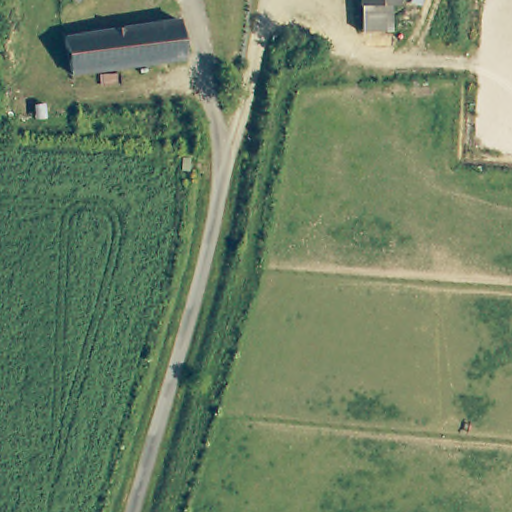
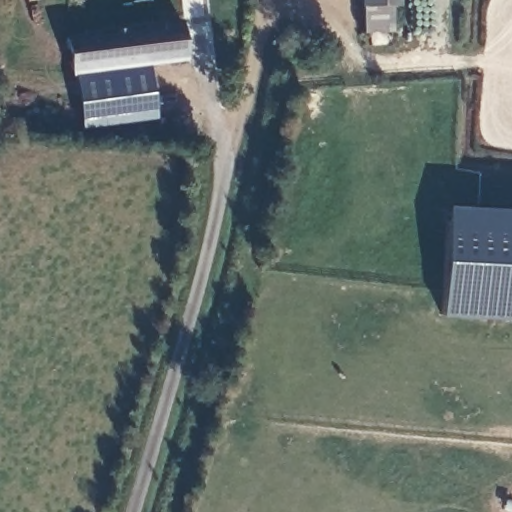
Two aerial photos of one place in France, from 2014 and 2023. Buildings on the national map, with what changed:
unchanged [(84,2),(79,0),(85,0),(84,2)]
unchanged [(400,4),(396,5),(395,34),(364,33),(364,0),(401,0),(400,4)]
unchanged [(189,54),(77,72),(70,34),(183,19),(189,54)]
new [(148,61),(156,118),(85,128),(77,72),(148,61)]
new [(443,208),(512,212),(512,318),(436,313),(443,208)]

